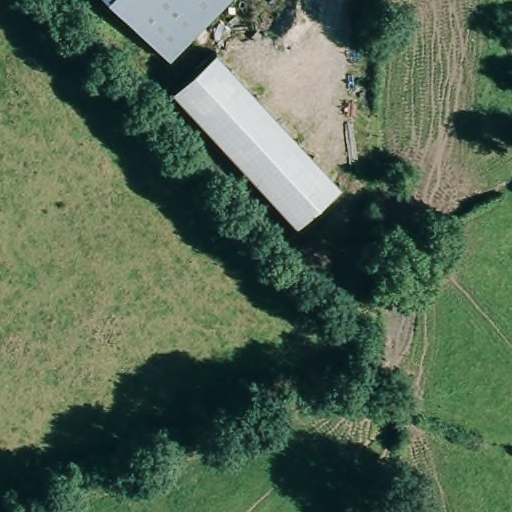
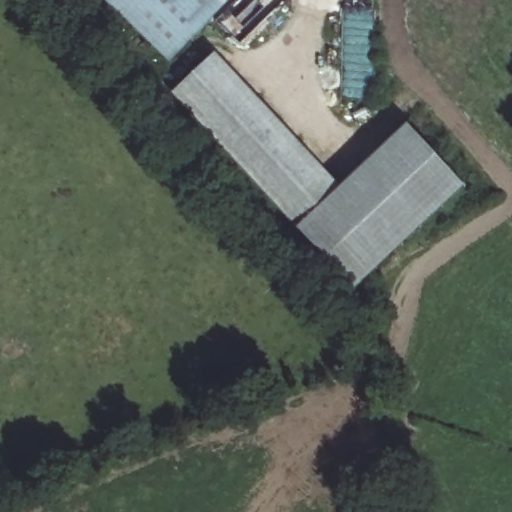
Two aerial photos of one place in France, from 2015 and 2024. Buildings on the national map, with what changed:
unchanged [(170,66),(164,60),(100,0),(233,0),(170,66)]
unchanged [(296,227),(172,93),(215,53),(341,188),(296,227)]
new [(341,188),(408,126),(465,187),(355,291),(296,227),(341,188)]

